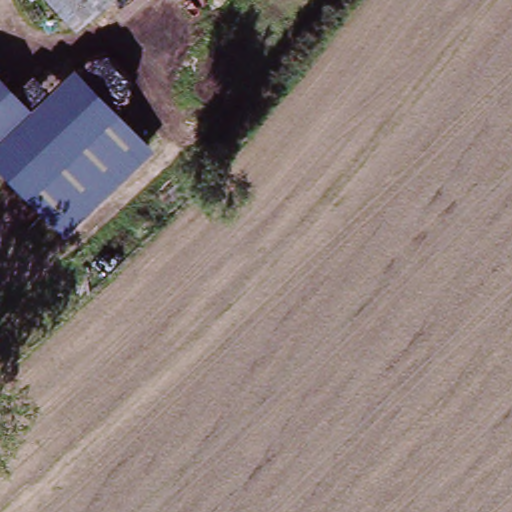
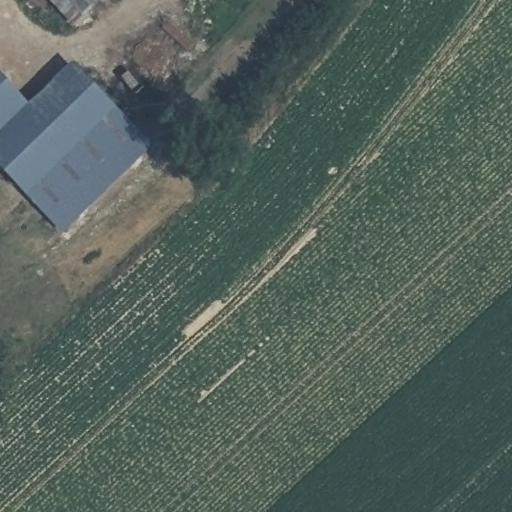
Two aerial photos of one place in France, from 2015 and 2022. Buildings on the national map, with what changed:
unchanged [(101,0),(82,16),(75,24),(54,0),(101,0)]
unchanged [(38,115),(82,75),(150,149),(62,230),(0,163),(0,74),(38,115)]

